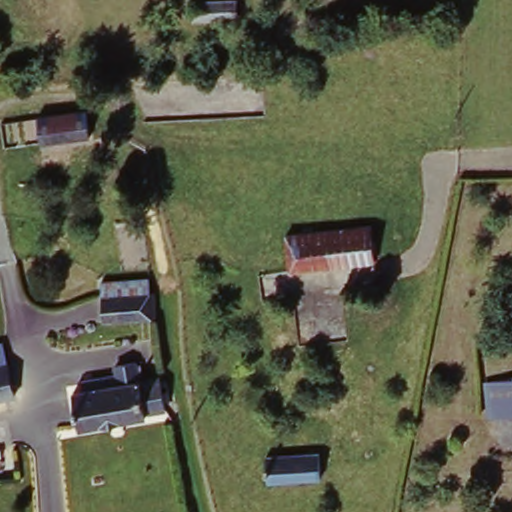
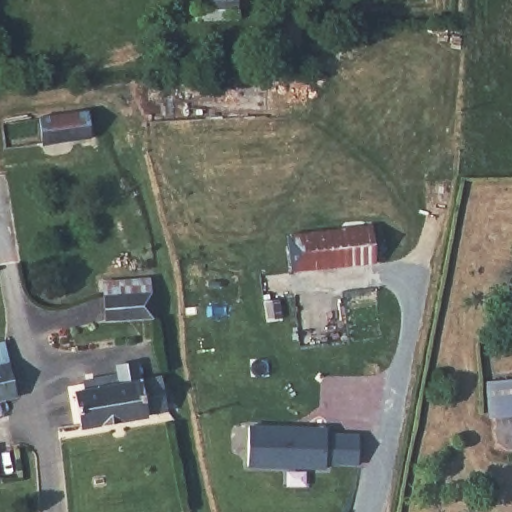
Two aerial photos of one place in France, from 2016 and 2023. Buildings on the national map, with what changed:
unchanged [(249,19),(193,20),(193,0),(248,0),(249,19)]
unchanged [(2,119),(90,107),(92,138),(4,147),(2,119)]
unchanged [(288,235),(371,227),(375,259),(293,270),(288,235)]
unchanged [(109,277),(158,285),(151,320),(102,311),(109,277)]
unchanged [(5,341),(18,392),(0,396),(0,342),(5,341)]
unchanged [(74,427),(69,395),(80,392),(79,385),(114,380),(112,370),(132,367),(132,371),(137,370),(138,380),(134,380),(135,386),(137,386),(137,387),(156,384),(161,417),(74,430),(74,427)]
unchanged [(512,379),(512,415),(495,417),(493,380),(512,379)]
new [(249,429),(325,427),(326,434),(358,436),(358,468),(325,466),(323,473),(247,472),(249,429)]
demolished [(270,460),(322,453),(325,480),(275,485),(270,460)]

